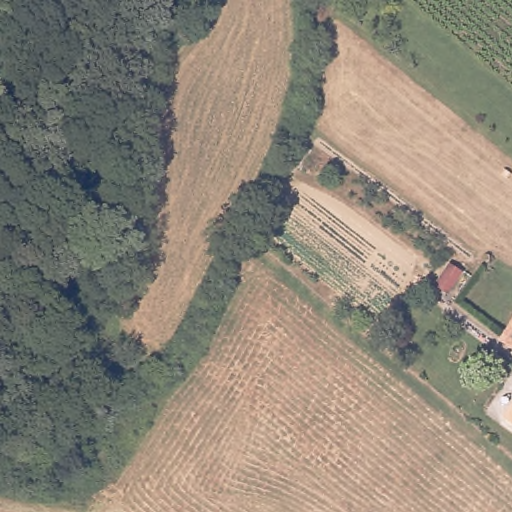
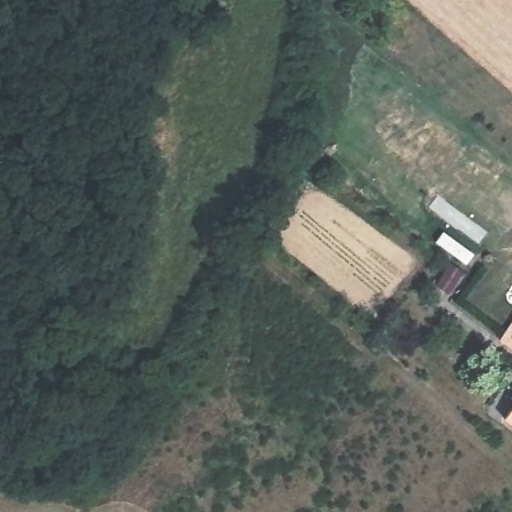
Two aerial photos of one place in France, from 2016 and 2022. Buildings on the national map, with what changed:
unchanged [(512,321),(512,329),(508,326),(512,321)]
unchanged [(512,430),(501,423),(512,407),(512,430)]

